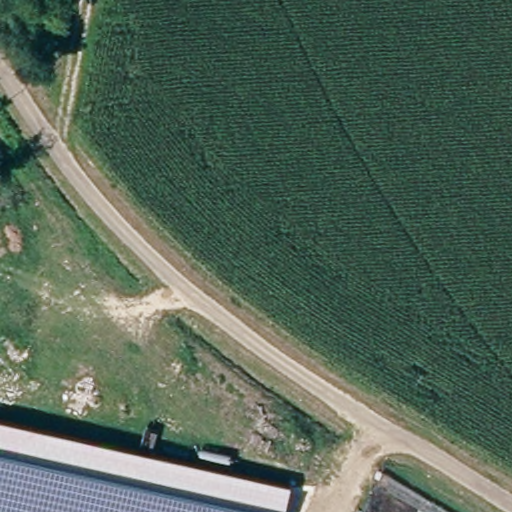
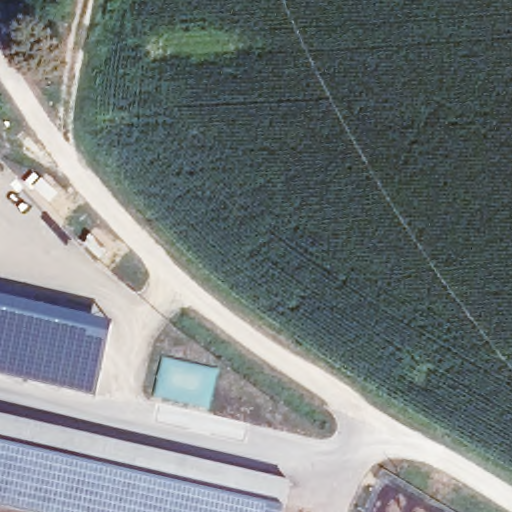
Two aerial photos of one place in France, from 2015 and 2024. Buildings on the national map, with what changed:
new [(11,300),(9,308),(78,324),(80,316),(111,325),(94,399),(0,377),(0,297),(11,300)]
unchanged [(285,512),(23,512),(0,507),(0,416),(293,482),(285,512)]

